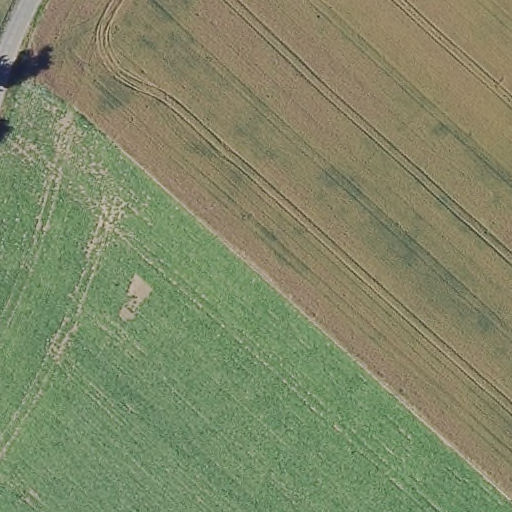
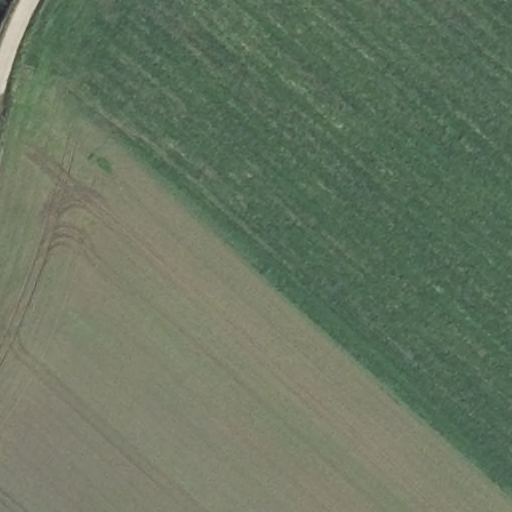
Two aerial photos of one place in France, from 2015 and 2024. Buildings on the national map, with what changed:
[]

